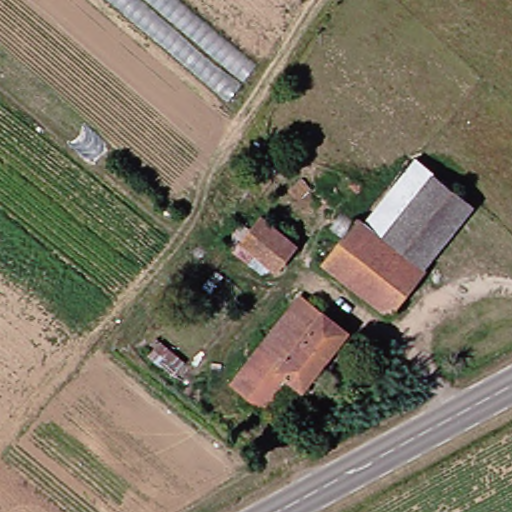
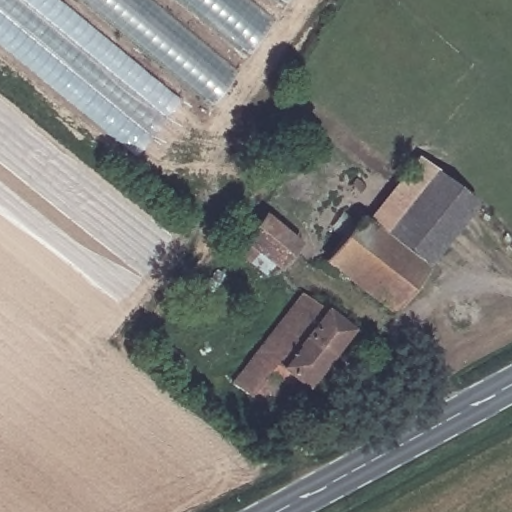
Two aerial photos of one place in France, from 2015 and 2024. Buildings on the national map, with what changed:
new [(0,49),(0,0),(53,0),(177,102),(132,159),(0,49)]
new [(150,0),(236,71),(209,107),(81,0),(150,0)]
new [(246,0),(272,22),(246,55),(180,0),(246,0)]
new [(286,0),(283,5),(278,0),(286,0)]
unchanged [(413,252),(372,220),(418,163),(476,209),(432,267),(413,252)]
unchanged [(372,220),(413,252),(383,296),(332,258),(366,216),(372,220)]
unchanged [(263,220),(299,250),(280,272),(244,245),(263,220)]
unchanged [(397,309),(383,296),(413,252),(432,267),(397,309)]
unchanged [(286,392),(271,412),(234,385),(307,296),(355,335),(310,391),(300,402),(286,392)]

